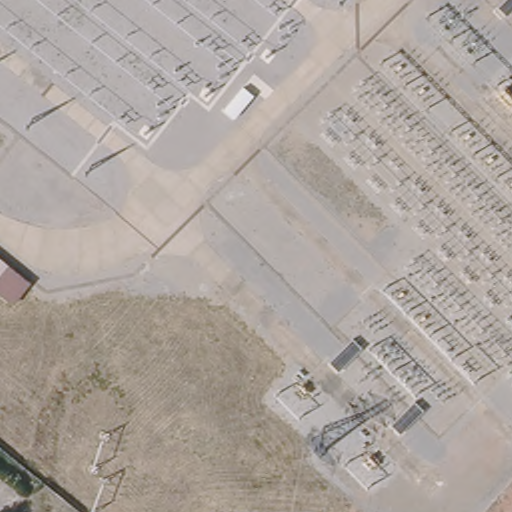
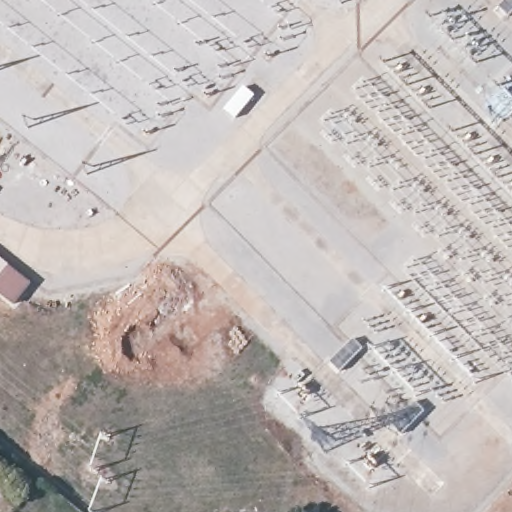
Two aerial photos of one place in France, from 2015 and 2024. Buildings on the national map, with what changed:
unchanged [(32,281),(18,303),(0,289),(0,255),(32,281)]

